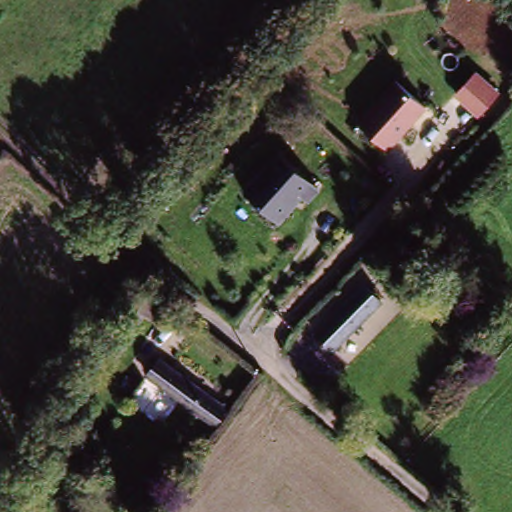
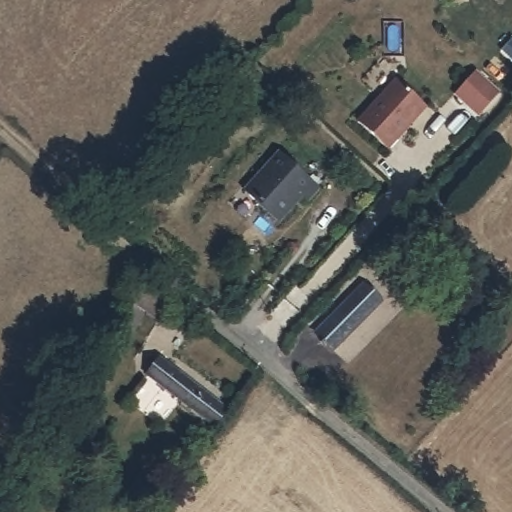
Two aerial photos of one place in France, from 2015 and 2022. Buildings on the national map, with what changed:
unchanged [(478,72),(507,100),(487,124),(457,94),(478,72)]
unchanged [(401,84),(430,112),(413,129),(390,153),(361,126),(401,84)]
unchanged [(246,195),(282,157),(320,193),(308,206),(303,201),(278,226),(246,195)]
unchanged [(301,323),(351,273),(381,305),(327,355),(301,323)]
unchanged [(165,363),(226,408),(213,425),(153,380),(165,363)]

